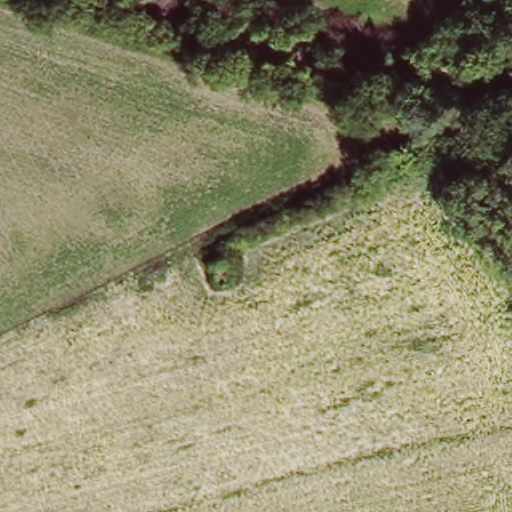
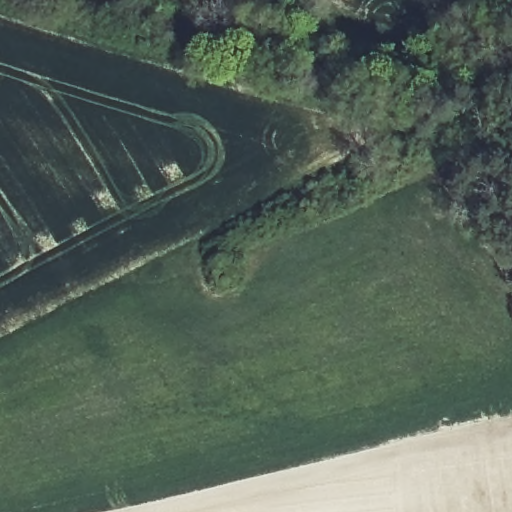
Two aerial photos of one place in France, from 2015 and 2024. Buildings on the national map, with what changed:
unchanged [(224,253),(232,270),(215,275),(210,258),(224,253)]

